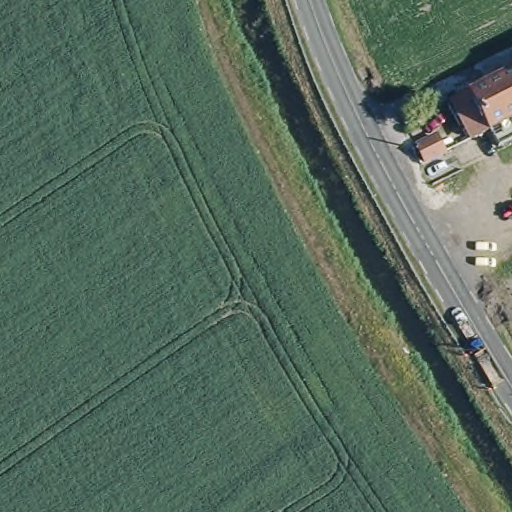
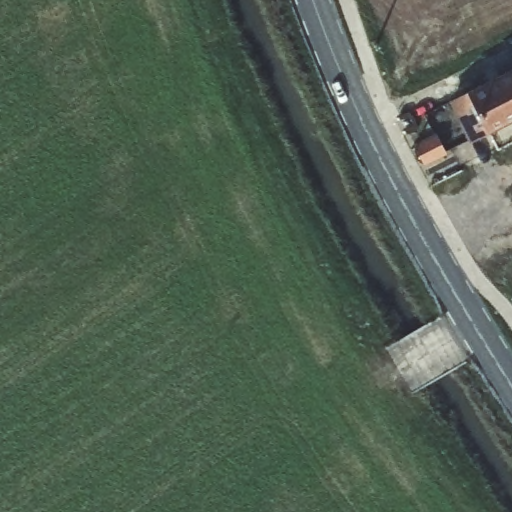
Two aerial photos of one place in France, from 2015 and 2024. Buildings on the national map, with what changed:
unchanged [(487,132),(474,138),(456,101),(512,70),(512,134),(497,142),(487,132)]
unchanged [(444,146),(423,157),(416,144),(434,133),(444,146)]

